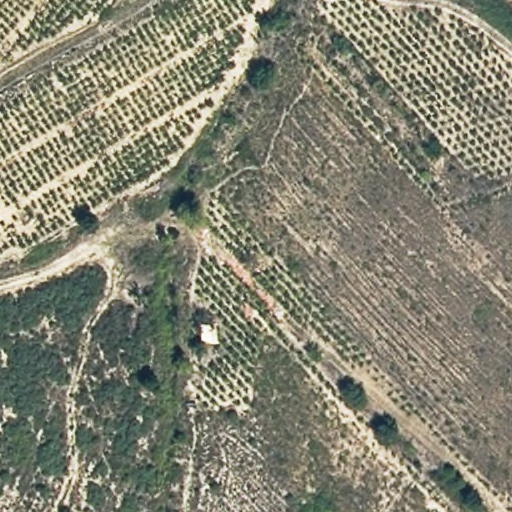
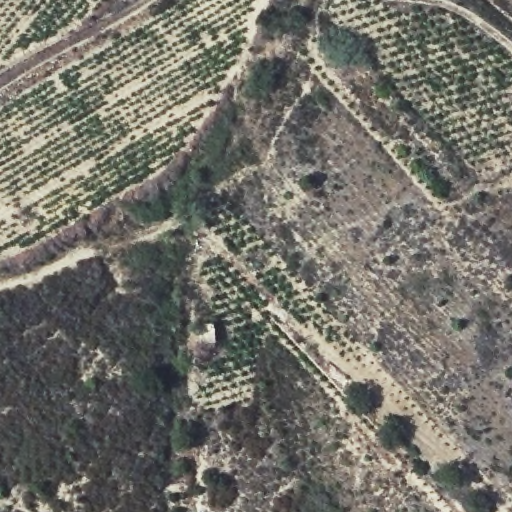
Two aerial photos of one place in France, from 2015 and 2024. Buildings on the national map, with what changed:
unchanged [(218,331),(218,350),(200,352),(200,330),(218,331)]

